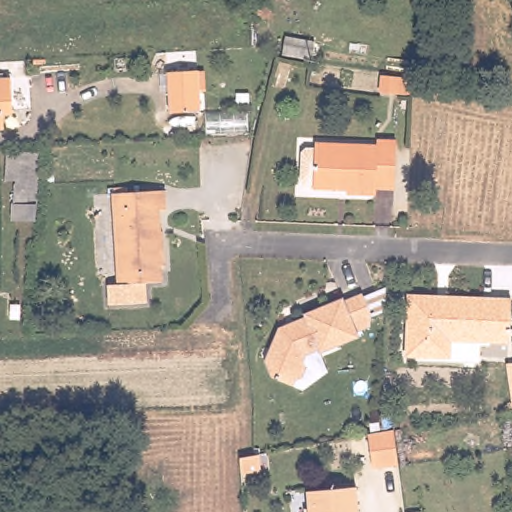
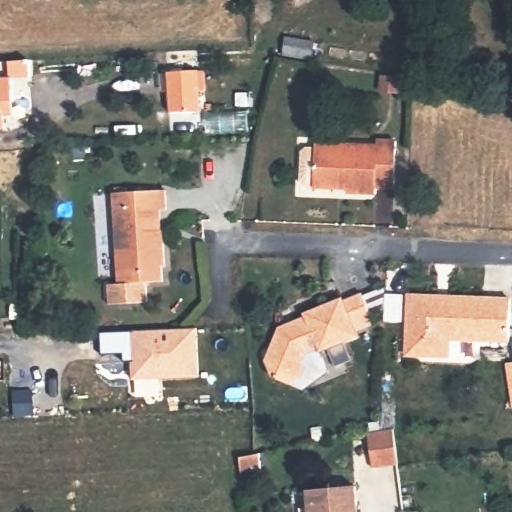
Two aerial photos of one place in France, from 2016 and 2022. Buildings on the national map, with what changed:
unchanged [(186,113),(169,115),(167,74),(197,72),(198,94),(199,112),(186,113)]
unchanged [(13,79),(15,116),(7,116),(8,129),(0,129),(0,80),(13,79)]
unchanged [(312,188),(312,187),(304,186),(299,182),(301,154),(305,150),(314,150),(314,145),(376,146),(376,141),(395,141),(394,189),(376,189),(375,194),(346,194),(347,189),(336,189),(312,188)]
unchanged [(12,221),(14,180),(5,180),(7,149),(44,150),(39,223),(12,221)]
unchanged [(115,235),(114,193),(165,191),(166,211),(154,212),(155,234),(115,235)]
unchanged [(115,235),(155,234),(164,233),(165,266),(162,266),(163,283),(138,285),(118,285),(117,276),(115,235)]
unchanged [(268,361),(280,325),(305,315),(304,313),(342,297),(343,300),(361,292),(363,296),(387,286),(386,307),(370,313),(370,315),(370,325),(355,330),(357,335),(319,351),(318,348),(307,352),(305,357),(307,363),(305,371),(303,375),(295,378),(294,385),(275,376),(271,377),(268,361)]
unchanged [(435,296),(435,300),(449,301),(450,296),(510,298),(509,333),(508,340),(482,340),(448,339),(448,346),(447,355),(406,353),(409,295),(419,295),(435,296)]
new [(197,326),(198,375),(132,377),(131,358),(133,358),(133,351),(131,351),(130,329),(197,326)]
unchanged [(512,364),(512,410),(507,365),(512,364)]
unchanged [(368,431),(382,428),(393,426),(398,460),(372,464),(368,431)]
unchanged [(309,492),(356,490),(357,508),(347,510),(347,512),(310,512),(309,492)]

